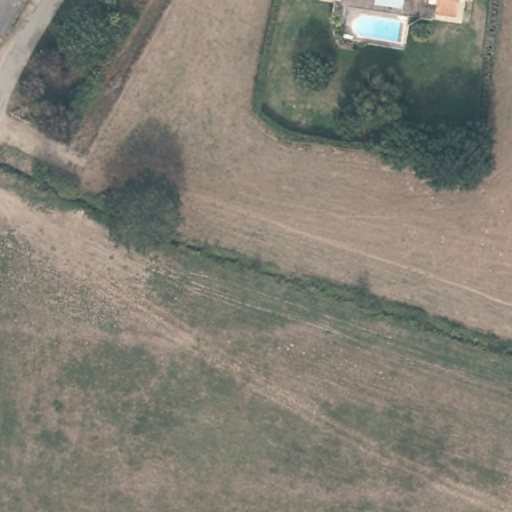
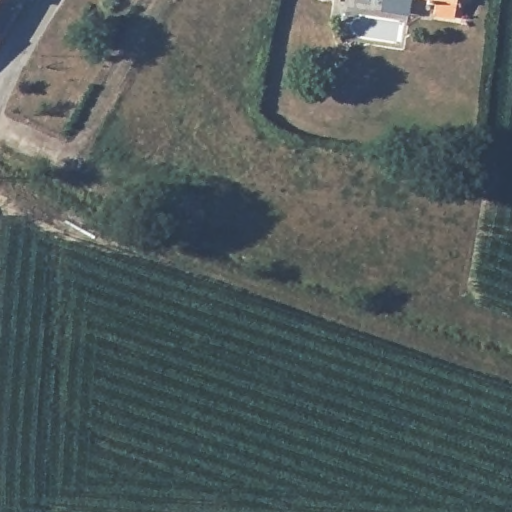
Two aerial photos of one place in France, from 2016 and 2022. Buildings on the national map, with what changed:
unchanged [(0,0),(22,0),(0,44),(0,0)]
unchanged [(449,16),(431,14),(430,1),(420,0),(455,0),(454,9),(449,16)]

